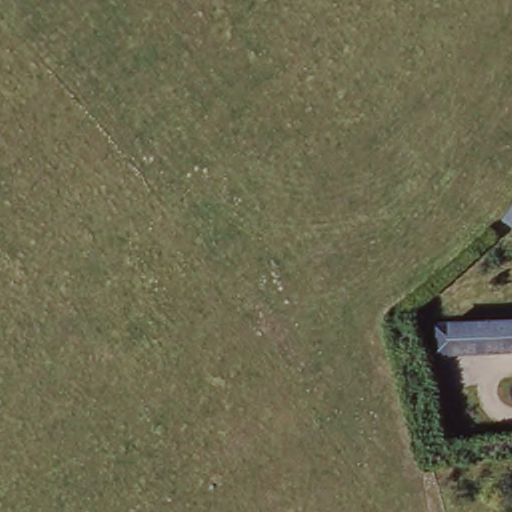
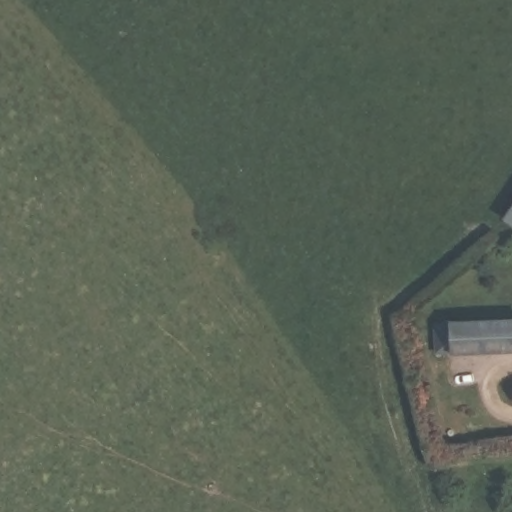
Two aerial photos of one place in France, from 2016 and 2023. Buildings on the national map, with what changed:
unchanged [(512,205),(512,227),(502,220),(512,205)]
unchanged [(512,323),(512,356),(431,358),(430,324),(512,323)]

